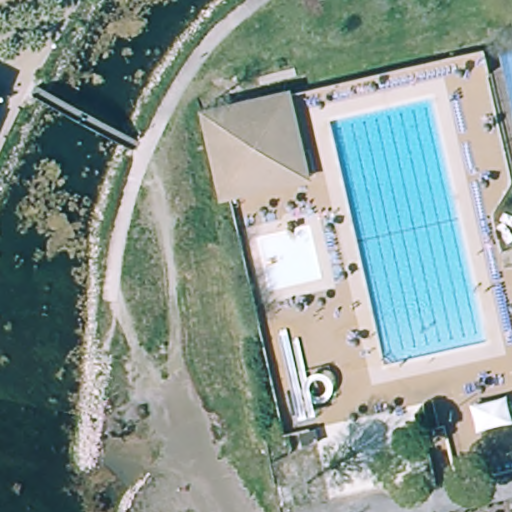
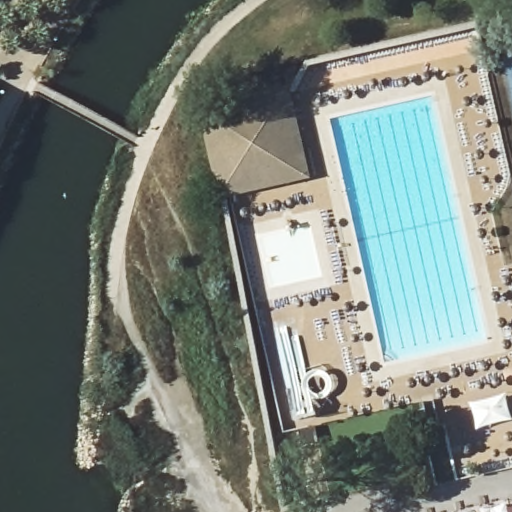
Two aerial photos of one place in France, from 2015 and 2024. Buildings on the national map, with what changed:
unchanged [(287,92),(304,181),(218,198),(208,146),(201,110),(287,92)]

